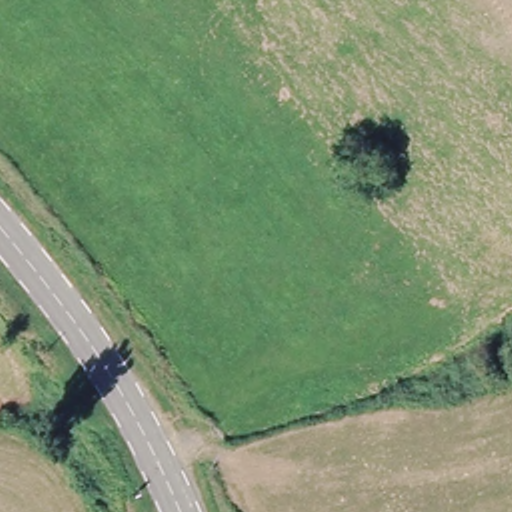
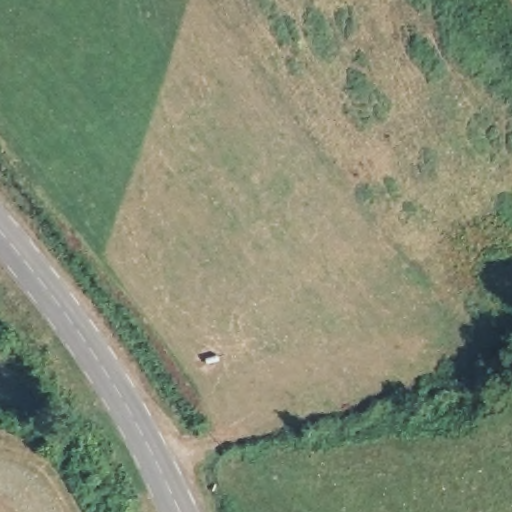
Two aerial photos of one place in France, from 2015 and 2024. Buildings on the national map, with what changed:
[]

